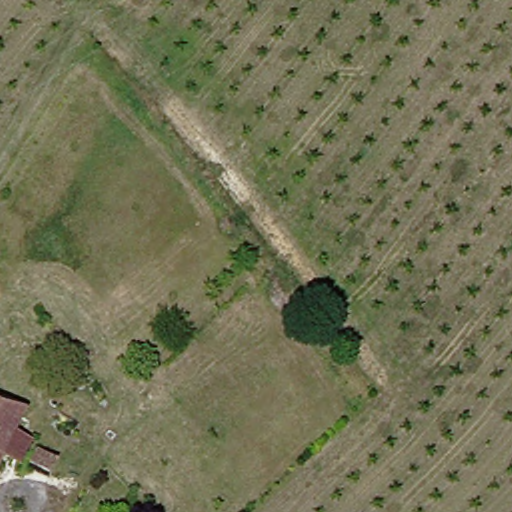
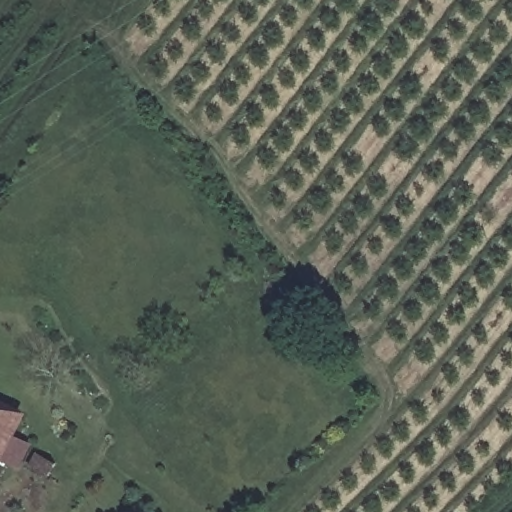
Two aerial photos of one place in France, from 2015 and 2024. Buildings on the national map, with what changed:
unchanged [(31,423),(19,454),(0,446),(0,377),(16,384),(22,386),(11,411),(31,423)]

